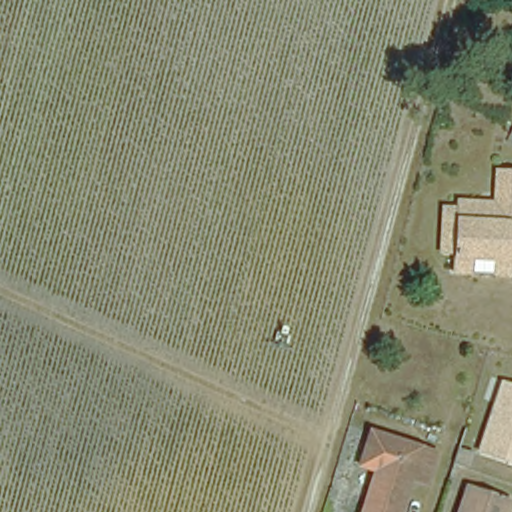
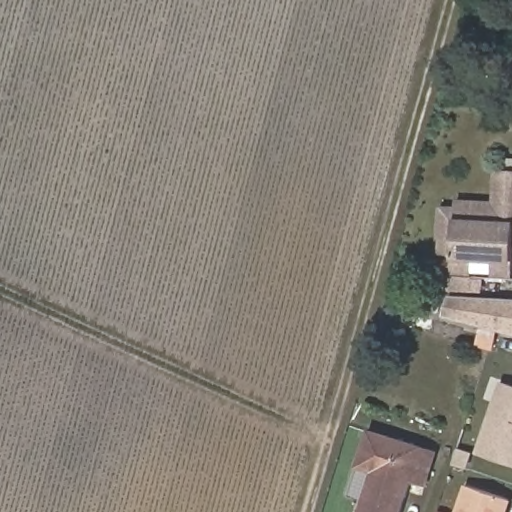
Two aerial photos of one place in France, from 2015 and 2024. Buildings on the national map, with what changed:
unchanged [(512,171),(512,203),(493,202),(495,170),(512,171)]
unchanged [(512,203),(512,227),(511,240),(509,271),(487,270),(488,256),(468,255),(467,268),(447,267),(448,249),(437,248),(440,206),(452,207),(452,199),(493,202),(512,203)]
unchanged [(512,227),(512,240),(511,240),(512,227)]
new [(512,299),(512,334),(443,316),(449,295),(512,299)]
unchanged [(505,383),(512,386),(512,463),(481,451),(505,383)]
unchanged [(433,447),(425,475),(411,471),(398,512),(362,512),(377,465),(362,460),(372,428),(433,447)]
unchanged [(462,448),(473,452),(468,467),(456,463),(462,448)]
unchanged [(505,492),(498,512),(452,512),(463,478),(505,492)]

